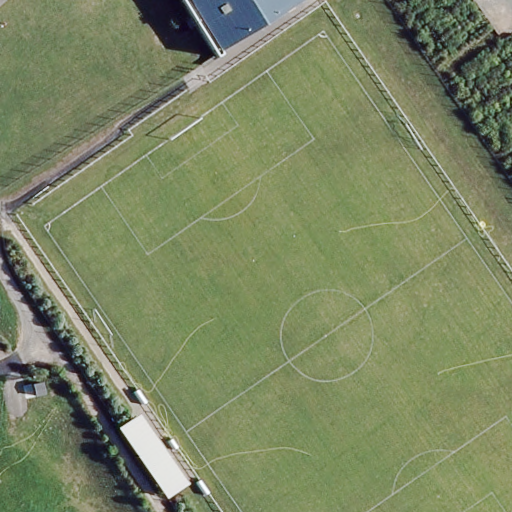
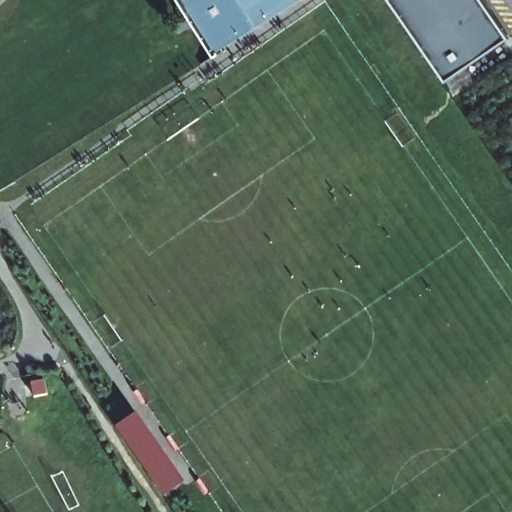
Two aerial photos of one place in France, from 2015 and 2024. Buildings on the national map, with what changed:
unchanged [(290,0),(211,49),(182,0),(290,0)]
new [(484,0),(512,40),(448,85),(390,0),(391,0),(484,0)]
unchanged [(175,483),(157,493),(118,425),(135,414),(175,483)]

